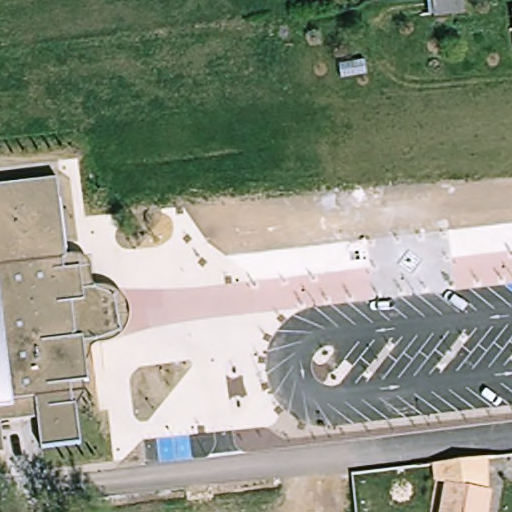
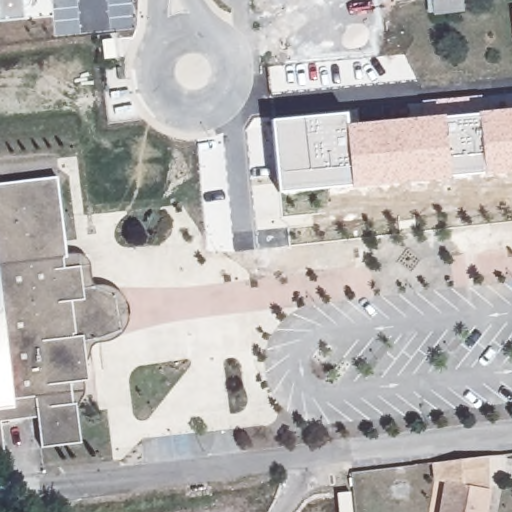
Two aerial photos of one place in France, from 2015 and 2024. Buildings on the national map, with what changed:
new [(0,21),(0,0),(21,0),(22,19),(0,21)]
new [(393,1),(393,0),(402,0),(393,1)]
unchanged [(465,11),(435,15),(432,0),(463,0),(465,11)]
new [(483,172),(449,176),(449,180),(350,189),(350,185),(278,194),(270,120),(346,112),(347,124),(423,117),(420,101),(483,95),(485,111),(512,109),(512,174),(484,176),(483,172)]
unchanged [(61,176),(70,255),(94,255),(98,286),(115,287),(125,292),(132,302),(135,311),(135,318),(131,328),(127,335),(120,341),(113,347),(105,348),(89,351),(90,388),(79,390),(82,448),(43,452),(38,423),(6,425),(8,460),(0,460),(0,183),(61,176)]
unchanged [(441,512),(446,480),(435,478),(433,461),(478,456),(490,455),(490,490),(493,490),(489,512),(441,512)]

